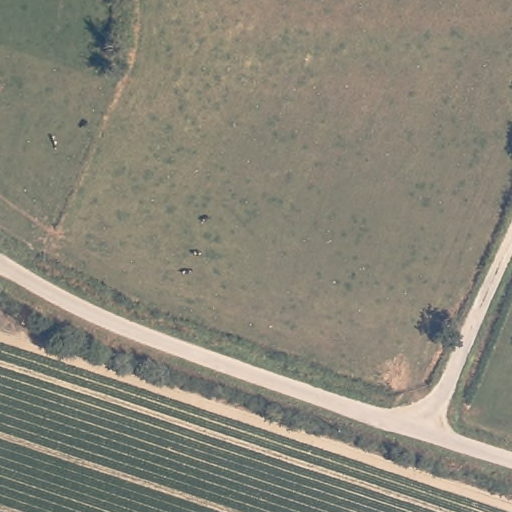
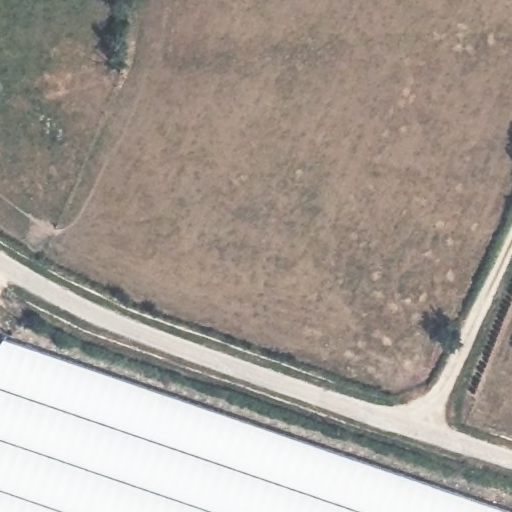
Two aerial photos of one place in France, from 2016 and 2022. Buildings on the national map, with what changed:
new [(511,512),(0,512),(0,343),(2,340),(511,512)]

